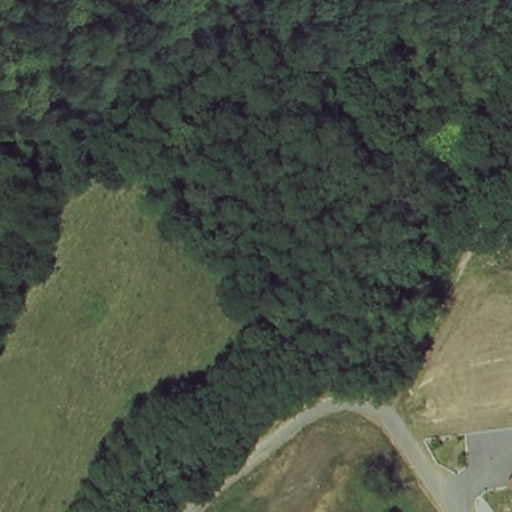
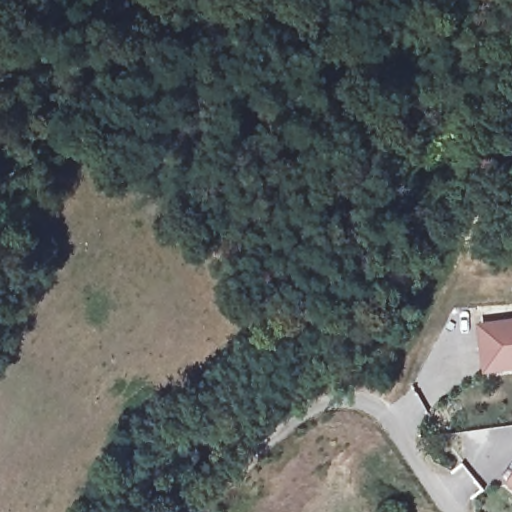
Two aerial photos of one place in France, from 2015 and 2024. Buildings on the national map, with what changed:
new [(477,324),(512,319),(512,371),(485,374),(477,324)]
unchanged [(512,472),(512,492),(502,484),(512,472)]

